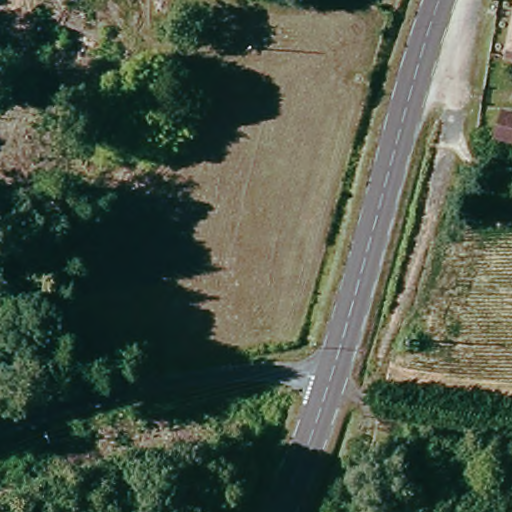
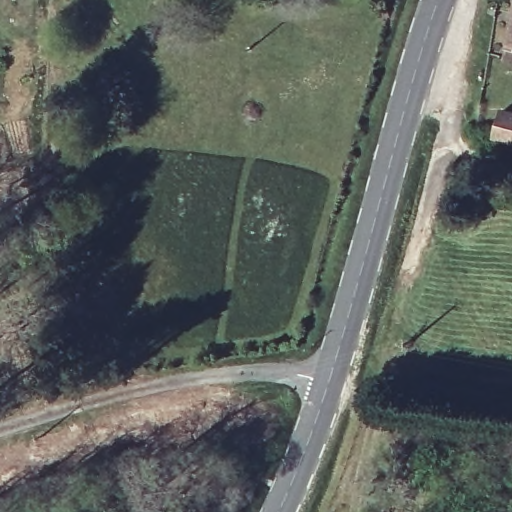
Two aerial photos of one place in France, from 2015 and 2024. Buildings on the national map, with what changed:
unchanged [(512,34),(512,54),(509,53),(512,34)]
unchanged [(502,111),(512,114),(512,146),(494,142),(502,111)]

